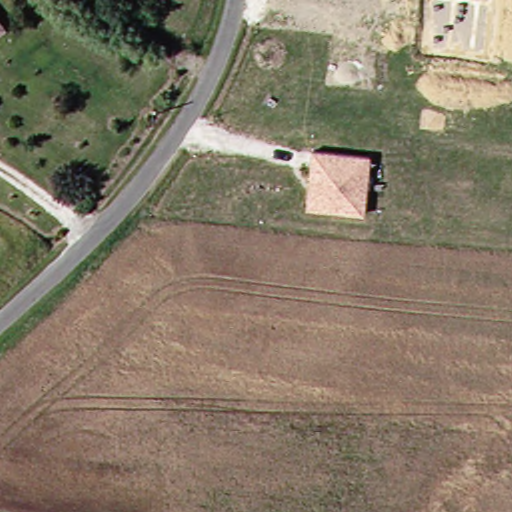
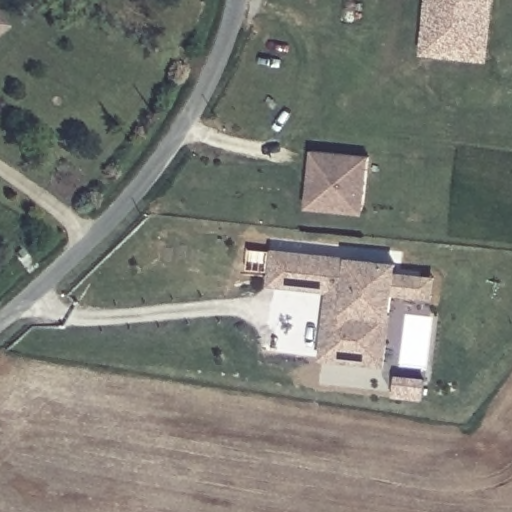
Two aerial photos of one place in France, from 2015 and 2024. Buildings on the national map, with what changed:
new [(493,0),(488,56),(427,50),(431,0),(493,0)]
unchanged [(0,34),(0,17),(8,29),(0,34)]
unchanged [(306,182),(309,150),(376,156),(370,212),(315,207),(303,206),(306,182)]
new [(396,293),(394,317),(390,365),(321,360),(327,293),(268,288),(272,249),(348,256),(399,261),(398,272),(437,276),(435,299),(396,293)]

